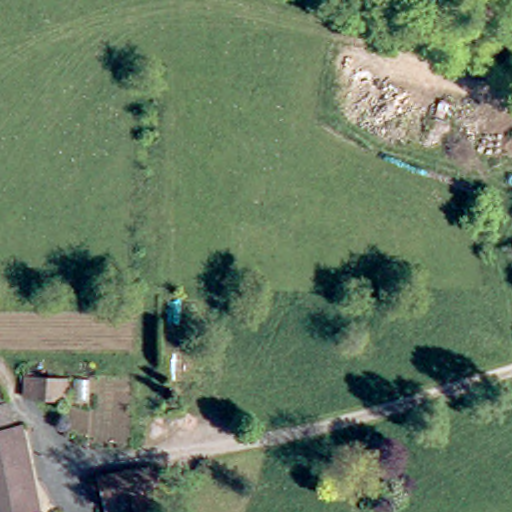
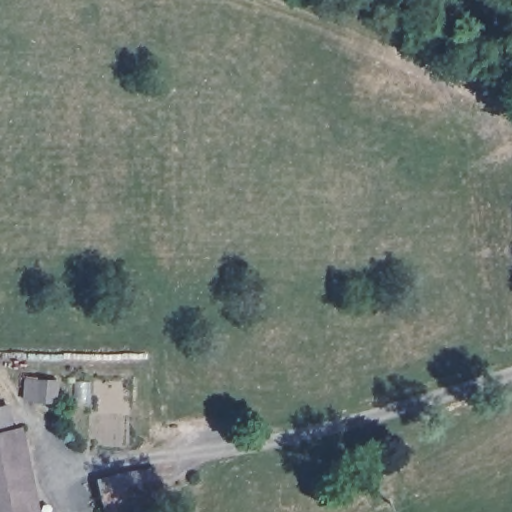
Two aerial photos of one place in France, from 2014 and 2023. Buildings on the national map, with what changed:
unchanged [(65,400),(22,396),(23,374),(66,380),(65,400)]
unchanged [(21,432),(29,430),(46,512),(0,512),(0,413),(16,409),(21,432)]
unchanged [(162,476),(168,512),(133,512),(127,482),(162,476)]
unchanged [(113,481),(114,485),(127,482),(133,512),(90,512),(83,486),(113,481)]

